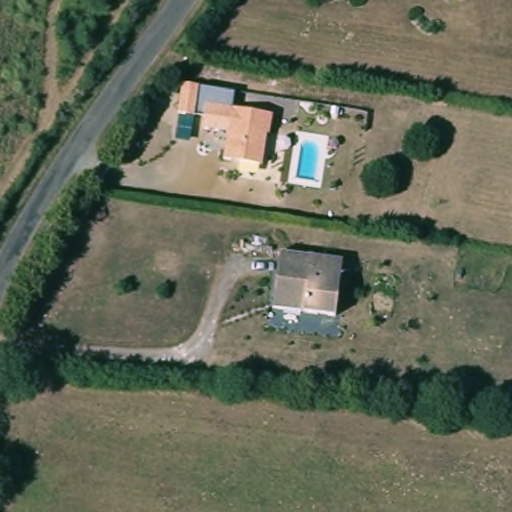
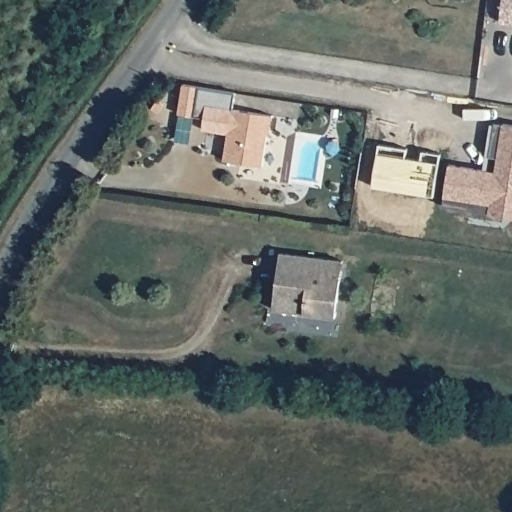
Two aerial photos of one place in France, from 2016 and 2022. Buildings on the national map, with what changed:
new [(502,0),(512,0),(512,24),(499,22),(502,0)]
unchanged [(203,74),(199,102),(181,100),(186,71),(203,74)]
unchanged [(224,157),(227,138),(232,108),(275,115),(272,130),(267,130),(265,143),(262,164),(224,157)]
new [(503,215),(442,207),(448,165),(495,172),(497,157),(488,156),(493,122),(512,125),(512,217),(503,215)]
unchanged [(280,251),(342,259),(336,320),(296,316),(296,311),(272,308),(280,251)]

